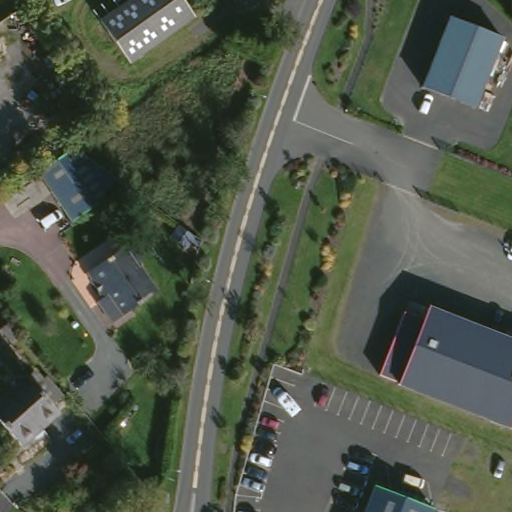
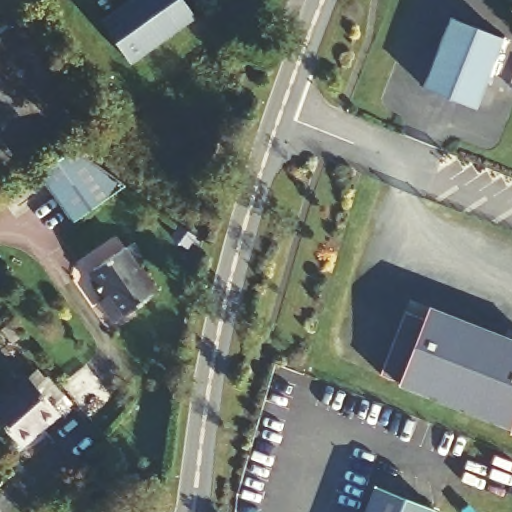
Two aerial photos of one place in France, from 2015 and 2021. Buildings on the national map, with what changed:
unchanged [(129,0),(189,0),(199,15),(127,59),(102,17),(129,0)]
unchanged [(502,42),(475,112),(423,92),(451,21),(502,42)]
unchanged [(77,146),(125,187),(75,219),(40,170),(77,146)]
unchanged [(124,312),(111,291),(105,294),(93,276),(97,263),(129,244),(142,265),(146,262),(155,277),(162,288),(151,295),(124,312)]
unchanged [(427,317),(433,305),(512,337),(512,422),(511,426),(403,383),(386,375),(406,309),(427,317)]
unchanged [(64,402),(47,415),(51,419),(14,448),(0,431),(0,398),(38,367),(64,402)]
unchanged [(430,512),(368,512),(379,487),(430,512)]

